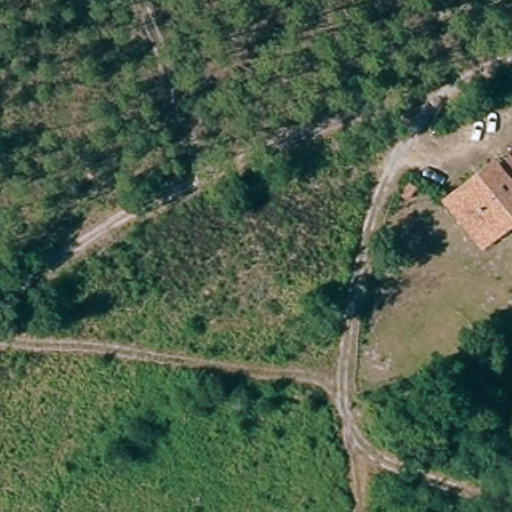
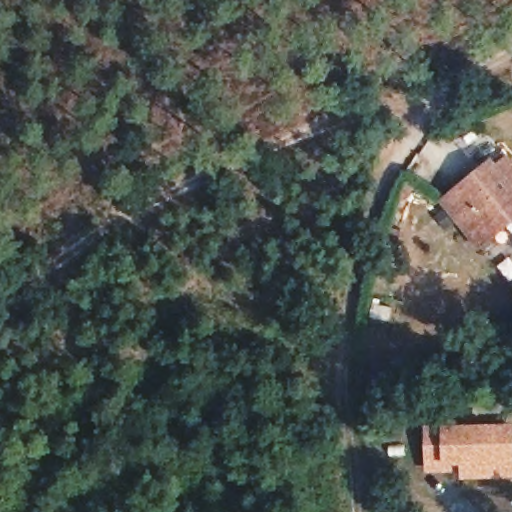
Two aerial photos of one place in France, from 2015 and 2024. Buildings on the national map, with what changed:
unchanged [(445,195),(461,182),(493,157),(498,163),(510,154),(512,158),(512,216),(481,240),(477,235),(445,195)]
new [(462,478),(461,471),(427,472),(426,425),(441,425),(512,423),(512,477),(493,477),(462,478)]

